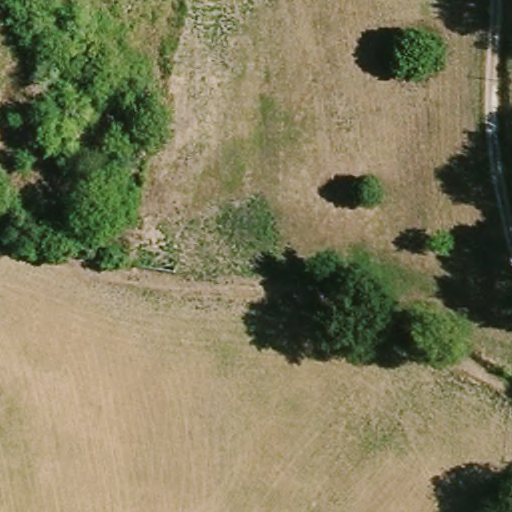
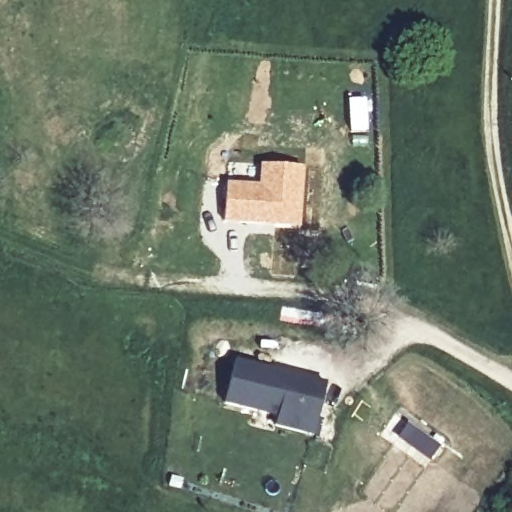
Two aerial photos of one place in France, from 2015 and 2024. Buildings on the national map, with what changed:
new [(369,96),(369,136),(350,137),(347,97),(369,96)]
new [(226,180),(257,183),(260,162),(305,166),(300,229),(222,221),(226,180)]
new [(232,362),(323,387),(308,438),(270,428),(273,418),(220,404),(232,362)]

